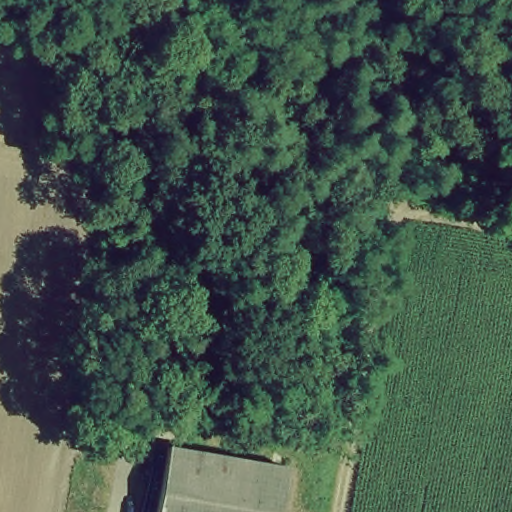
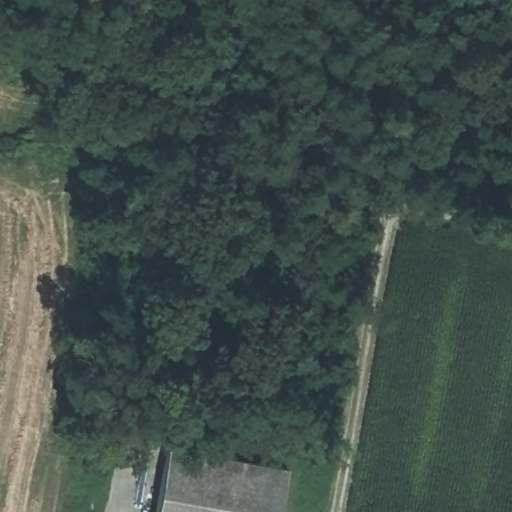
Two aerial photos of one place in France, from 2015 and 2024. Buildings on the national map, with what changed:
unchanged [(155,512),(167,448),(290,469),(282,512),(155,512)]

